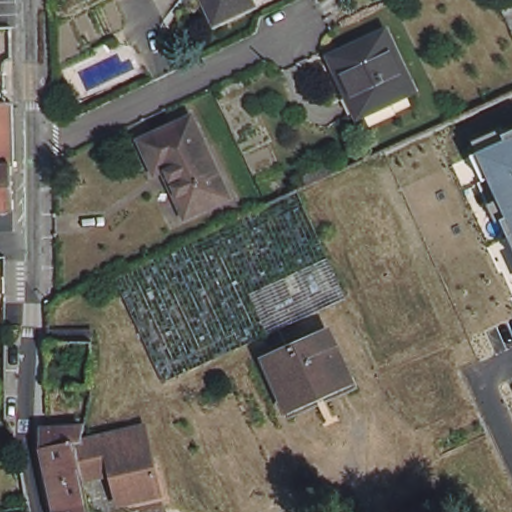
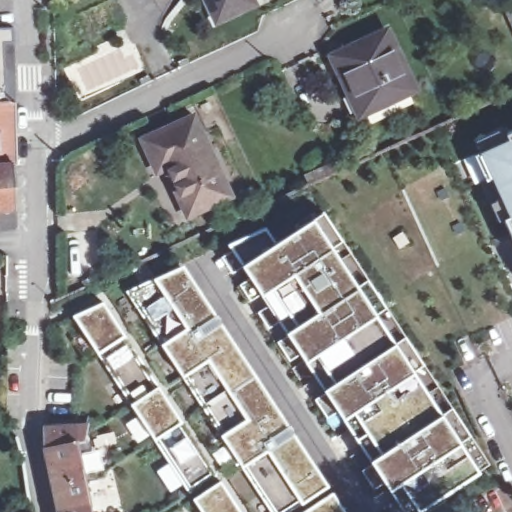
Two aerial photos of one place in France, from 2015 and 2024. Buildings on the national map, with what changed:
unchanged [(219,18),(210,0),(253,0),(254,1),(219,18)]
unchanged [(344,57),(392,34),(419,92),(365,118),(352,94),(335,61),(344,57)]
unchanged [(14,101),(21,104),(22,166),(20,167),(24,250),(0,250),(0,102),(14,101)]
unchanged [(154,166),(144,140),(194,116),(230,193),(188,213),(167,168),(154,166)]
unchanged [(498,222),(490,206),(500,202),(490,180),(485,183),(471,156),(480,151),(474,142),(499,130),(504,136),(512,132),(512,241),(502,220),(498,222)]
demolished [(314,196),(362,301),(240,357),(243,229),(314,196)]
new [(389,490),(384,483),(374,489),(362,470),(370,460),(342,419),(337,413),(327,419),(315,399),(323,390),(304,362),(300,355),(290,361),(277,341),(286,332),(280,321),(268,329),(259,313),(269,306),(261,294),(250,301),(240,285),(249,280),(242,268),(232,275),(221,257),(230,250),(227,245),(264,229),(272,245),(312,219),(323,213),(342,241),(367,280),(386,308),(405,337),(423,365),(451,408),(470,437),(489,464),(478,472),(417,512),(404,512),(389,490)]
demolished [(240,357),(181,385),(131,279),(243,229),(240,357)]
new [(410,243),(401,248),(395,239),(404,233),(410,243)]
new [(289,512),(271,512),(242,468),(220,436),(182,378),(160,345),(126,291),(153,278),(182,265),(329,487),(300,505),(289,512)]
new [(154,441),(130,404),(97,355),(72,315),(102,302),(125,336),(157,386),(182,423),(217,476),(189,493),(154,441)]
demolished [(274,352),(335,326),(357,374),(295,402),(274,352)]
demolished [(157,424),(174,493),(145,499),(142,489),(129,492),(125,471),(97,477),(88,442),(94,440),(94,438),(157,424)]
unchanged [(94,440),(88,442),(97,477),(102,502),(67,508),(54,446),(56,427),(95,426),(94,438),(94,440)]
new [(113,434),(115,443),(99,447),(98,438),(113,434)]
unchanged [(220,479),(242,512),(203,512),(193,497),(220,479)]
new [(346,512),(300,512),(332,491),(346,512)]
unchanged [(67,508),(102,502),(104,512),(68,512),(67,508)]

